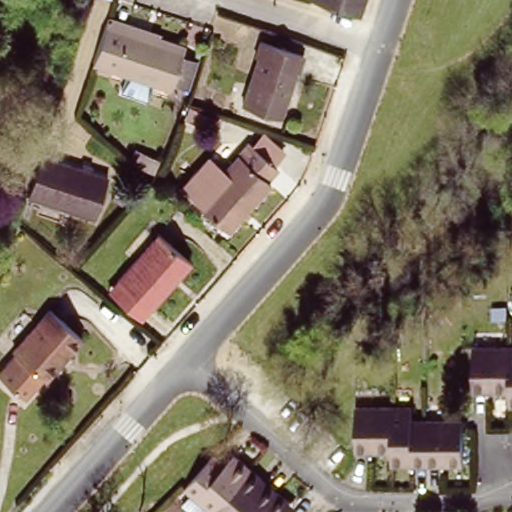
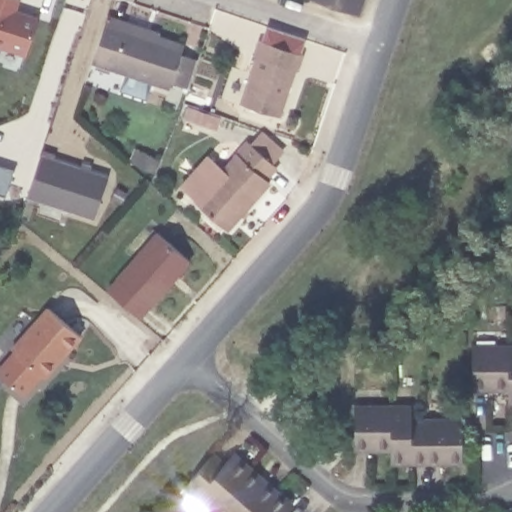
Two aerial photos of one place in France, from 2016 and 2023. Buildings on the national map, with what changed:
new [(0,48),(0,0),(21,0),(18,10),(39,17),(25,55),(0,48)]
unchanged [(316,1),(316,0),(369,0),(363,16),(316,1)]
unchanged [(199,85),(184,81),(182,90),(100,69),(113,27),(115,20),(166,34),(165,41),(192,49),(190,56),(207,60),(199,85)]
unchanged [(260,59),(266,43),(310,59),(305,75),(300,74),(283,121),(246,107),(263,60),(260,59)]
unchanged [(224,235),(177,191),(204,162),(220,176),(246,147),(274,173),(264,184),(267,187),(224,235)]
unchanged [(45,156),(110,180),(95,219),(31,196),(45,156)]
new [(5,197),(0,195),(0,167),(14,171),(5,197)]
unchanged [(110,290),(160,234),(191,261),(140,316),(110,290)]
unchanged [(20,351),(45,372),(25,396),(0,373),(0,365),(15,350),(11,347),(48,305),(55,309),(20,351)]
unchanged [(86,335),(51,377),(20,351),(55,309),(86,335)]
unchanged [(480,350),(512,350),(512,394),(480,394),(480,350)]
unchanged [(397,407),(418,406),(418,420),(434,420),(470,419),(470,463),(434,463),(397,463),(397,450),(364,450),(364,407),(397,407)]
unchanged [(233,466),(242,456),(254,467),(265,477),(261,480),(275,494),(280,490),(292,502),(283,511),(284,512),(219,512),(215,509),(190,486),(218,453),(233,466)]

